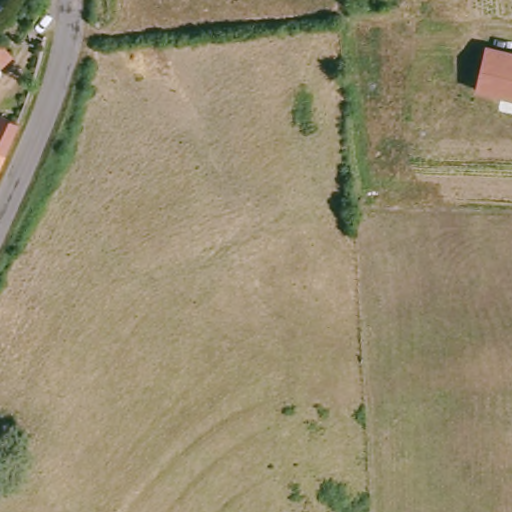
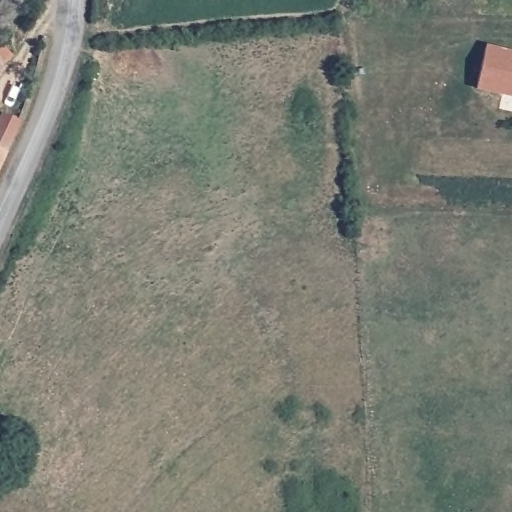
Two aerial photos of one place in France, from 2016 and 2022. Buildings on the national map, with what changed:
unchanged [(14,62),(5,70),(7,73),(0,79),(0,45),(14,62)]
unchanged [(512,55),(512,100),(475,92),(485,49),(512,55)]
unchanged [(0,161),(0,118),(2,115),(18,121),(0,161)]

